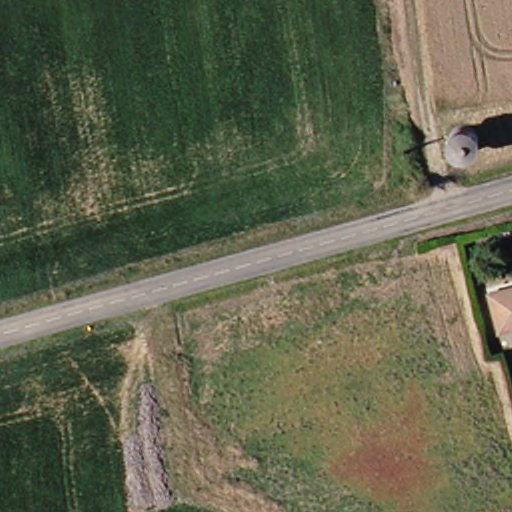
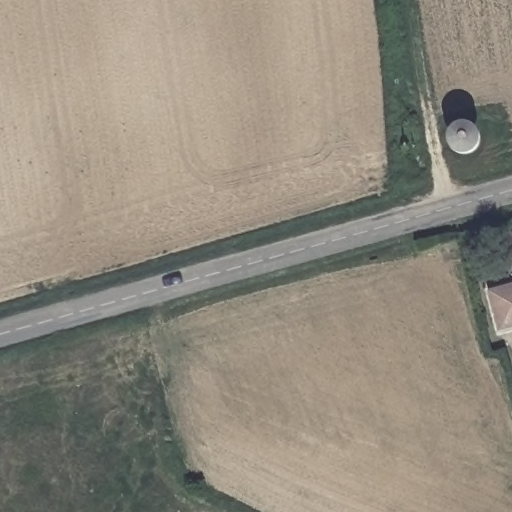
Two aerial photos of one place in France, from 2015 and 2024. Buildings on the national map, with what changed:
unchanged [(403,173),(418,168),(420,185),(408,189),(403,173)]
unchanged [(508,332),(498,292),(512,289),(512,331),(508,332)]

